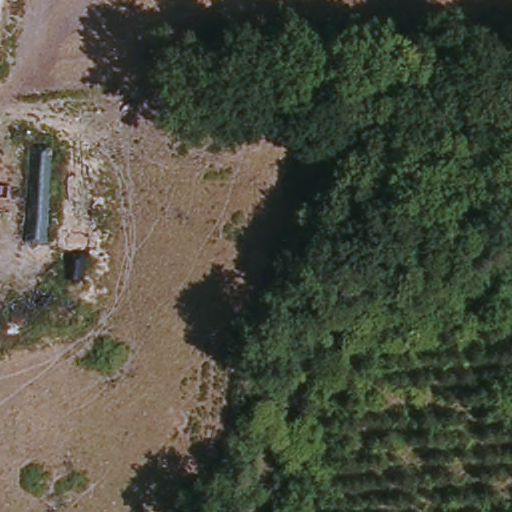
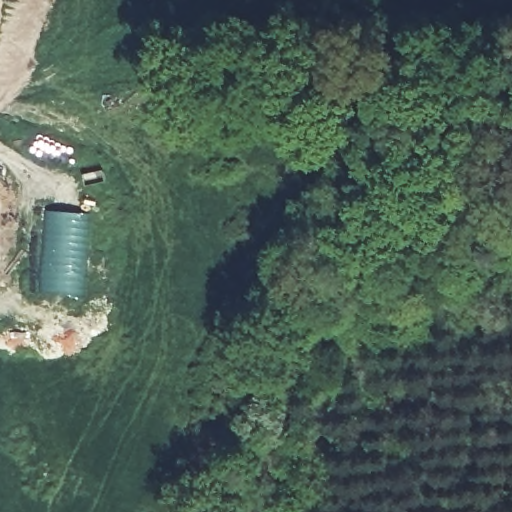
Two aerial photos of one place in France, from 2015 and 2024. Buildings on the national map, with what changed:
new [(44,211),(89,214),(83,296),(38,291),(44,211)]

